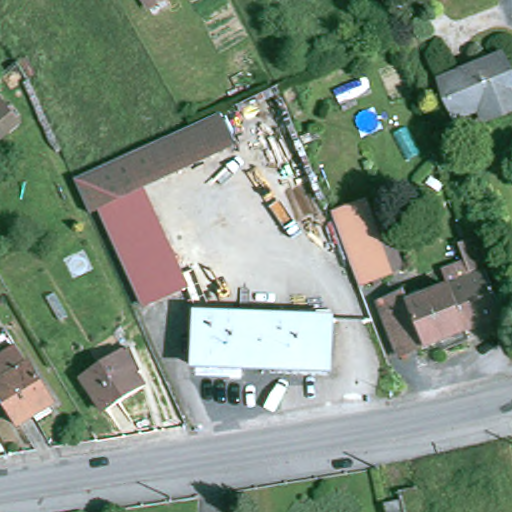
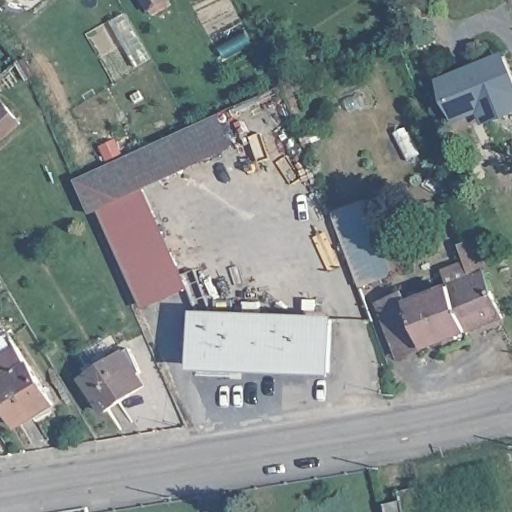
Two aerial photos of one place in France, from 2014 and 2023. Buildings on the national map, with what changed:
unchanged [(144,0),(165,0),(150,9),(144,0)]
unchanged [(457,120),(441,82),(502,56),(512,80),(512,111),(493,118),(484,122),(479,110),(457,120)]
unchanged [(20,123),(0,140),(0,98),(20,123)]
unchanged [(224,114),(240,148),(148,190),(107,209),(95,214),(80,180),(224,114)]
unchanged [(148,190),(192,287),(150,306),(107,209),(148,190)]
unchanged [(372,201),(399,273),(365,286),(339,214),(372,201)]
unchanged [(400,357),(380,304),(405,294),(408,305),(450,289),(443,272),(467,263),(461,246),(476,240),(489,274),(487,275),(503,317),(400,357)]
unchanged [(332,321),(330,372),(197,367),(199,316),(332,321)]
unchanged [(55,404),(19,426),(0,396),(0,360),(19,348),(30,366),(31,366),(55,404)]
unchanged [(130,349),(141,372),(137,375),(144,386),(105,412),(83,380),(130,349)]

